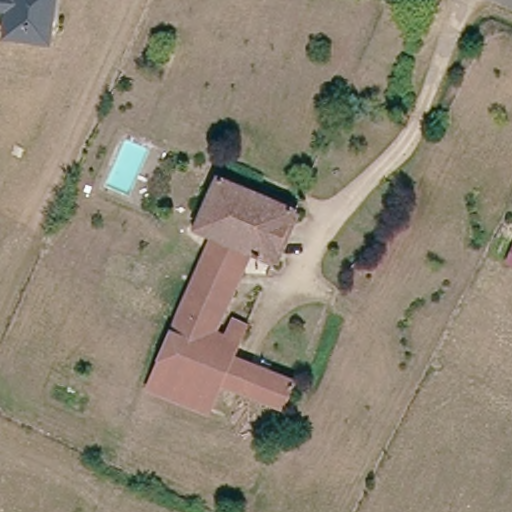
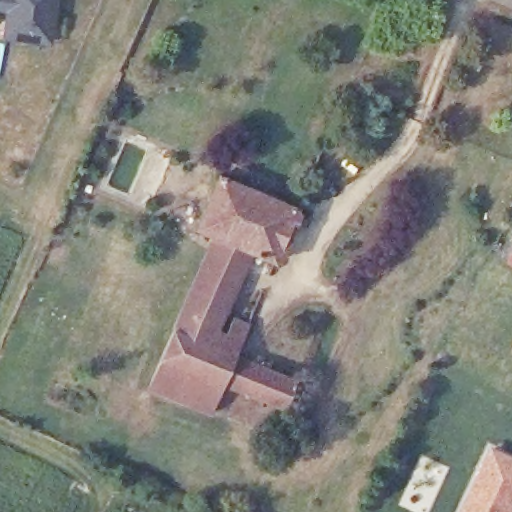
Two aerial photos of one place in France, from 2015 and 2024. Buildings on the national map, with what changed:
unchanged [(7,27),(9,12),(0,11),(0,0),(56,0),(51,34),(50,45),(5,39),(7,27)]
unchanged [(240,356),(228,387),(207,378),(164,360),(189,300),(215,237),(202,231),(225,179),(301,211),(278,265),(256,254),(223,331),(233,335),(238,320),(253,326),(247,341),(240,356)]
unchanged [(260,402),(228,387),(240,356),(273,371),(260,402)]
unchanged [(164,360),(207,378),(196,409),(152,390),(164,360)]
unchanged [(306,399),(294,395),(287,414),(260,402),(273,371),(310,386),(306,399)]
new [(489,445),(512,456),(512,512),(457,512),(489,445)]

